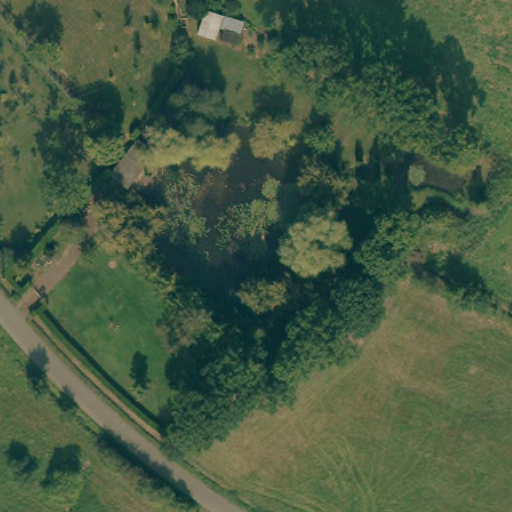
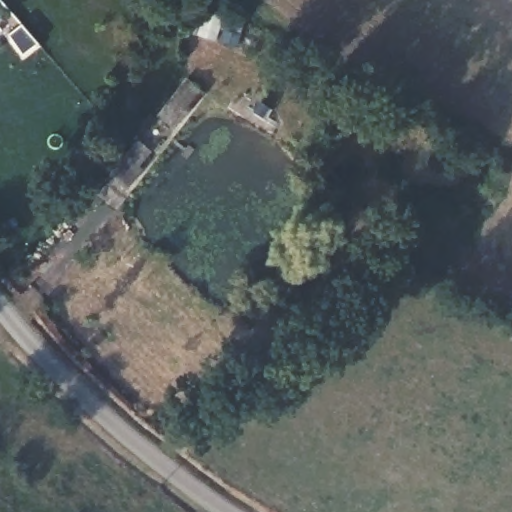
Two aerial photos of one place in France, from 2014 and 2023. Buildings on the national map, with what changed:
unchanged [(237,45),(221,40),(225,29),(219,28),(216,39),(198,33),(206,10),(244,24),(237,45)]
unchanged [(192,77),(208,90),(178,127),(162,114),(192,77)]
unchanged [(130,188),(120,179),(137,163),(146,170),(130,188)]

